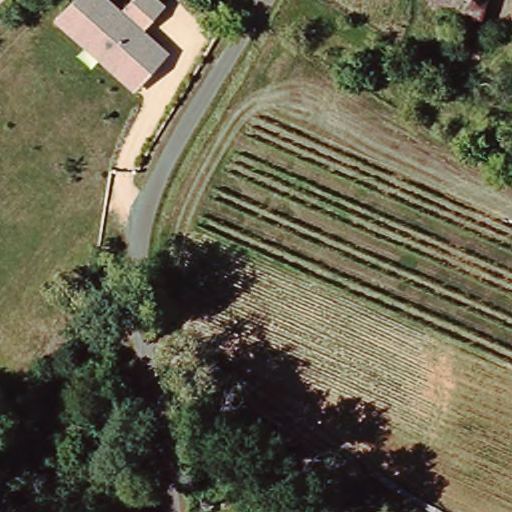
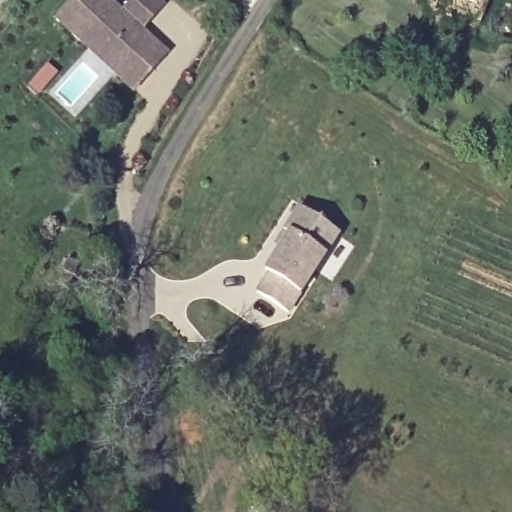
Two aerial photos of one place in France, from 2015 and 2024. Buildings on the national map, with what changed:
unchanged [(121,9),(130,0),(159,0),(165,5),(143,30),(168,54),(132,93),(53,20),(72,0),(111,0),(121,9)]
unchanged [(475,39),(461,34),(459,37),(438,30),(444,10),(434,7),(437,0),(486,0),(475,39)]
new [(255,293),(267,275),(262,272),(285,236),(281,234),(297,209),(338,235),(325,256),(300,295),(290,315),(255,293)]

